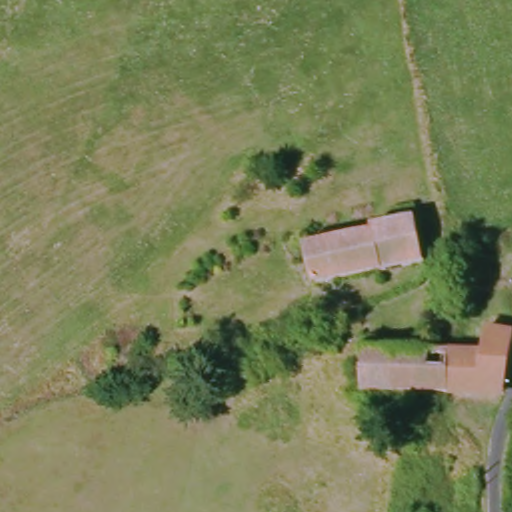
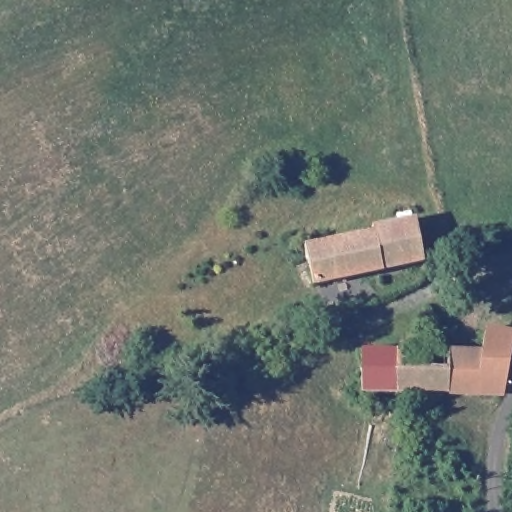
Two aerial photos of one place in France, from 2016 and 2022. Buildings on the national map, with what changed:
unchanged [(426,264),(314,286),(306,242),(371,229),(370,222),(417,212),(426,264)]
unchanged [(484,352),(491,328),(512,332),(512,343),(503,383),(481,382),(479,391),(449,390),(451,350),(484,352)]
unchanged [(451,350),(449,390),(362,388),(362,345),(451,350)]

